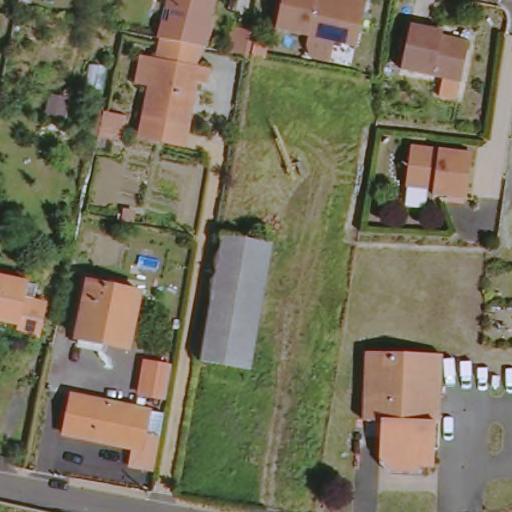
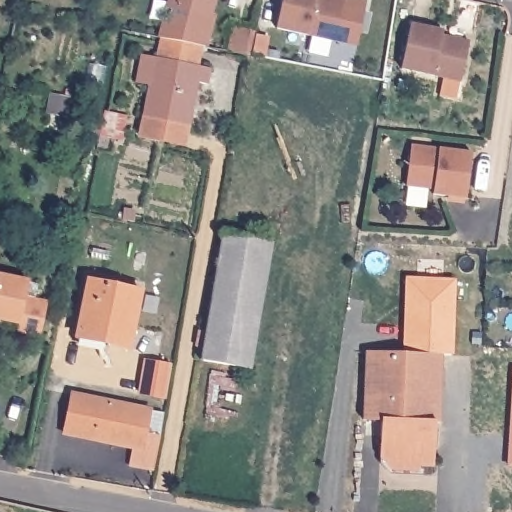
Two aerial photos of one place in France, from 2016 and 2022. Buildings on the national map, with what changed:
unchanged [(209,51),(206,50),(203,67),(212,68),(209,86),(200,85),(187,150),(138,141),(149,88),(136,86),(142,57),(158,61),(162,40),(159,39),(168,0),(220,0),(209,51)]
unchanged [(321,60),(314,46),(315,39),(279,31),(285,0),(339,0),(350,2),(340,45),(339,45),(335,64),(321,60)]
unchanged [(467,82),(464,101),(447,98),(450,79),(407,71),(415,25),(447,31),(446,37),(475,41),(468,82),(467,82)]
unchanged [(273,37),(267,60),(227,54),(233,27),(273,37)]
unchanged [(102,112),(125,117),(122,125),(119,141),(96,137),(102,112)]
unchanged [(440,193),(411,191),(417,150),(479,158),(472,204),(440,199),(440,193)]
unchanged [(234,233),(282,242),(258,371),(209,362),(234,233)]
new [(406,276),(457,277),(451,359),(402,357),(406,276)]
unchanged [(95,279),(147,290),(134,348),(82,336),(95,279)]
unchanged [(52,309),(45,342),(21,337),(23,329),(0,324),(0,280),(6,282),(33,288),(32,291),(29,304),(52,309)]
unchanged [(442,427),(441,468),(426,467),(425,475),(400,473),(388,460),(390,424),(371,422),(374,356),(451,359),(447,427),(442,427)]
unchanged [(167,402),(139,398),(144,361),(173,365),(167,402)]
new [(512,383),(512,468),(508,468),(512,383)]
unchanged [(68,438),(76,398),(154,414),(145,454),(68,438)]
unchanged [(163,440),(155,473),(130,468),(134,452),(145,454),(149,437),(163,440)]

